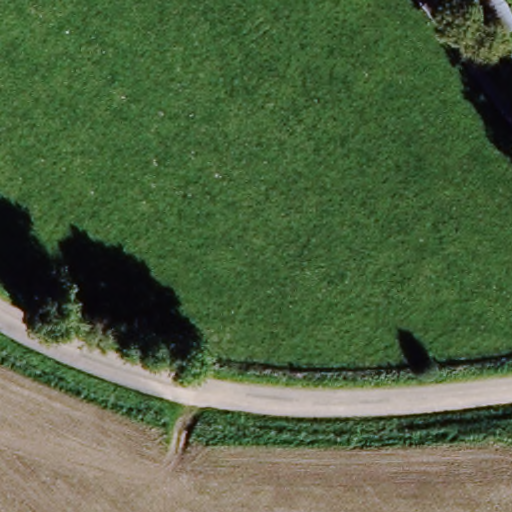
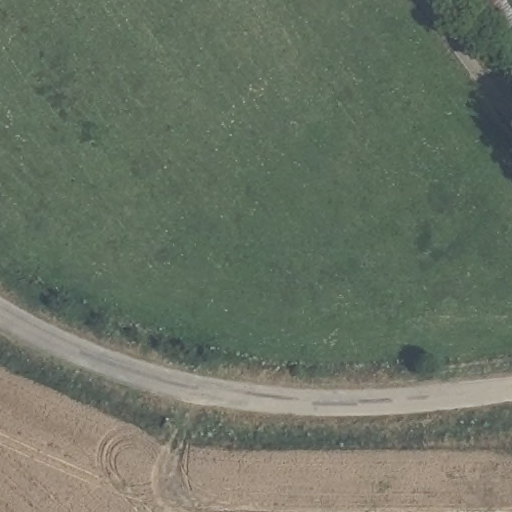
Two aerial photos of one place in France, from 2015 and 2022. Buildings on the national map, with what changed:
unchanged [(512,28),(502,36),(474,0),(506,0),(512,8),(512,28)]

